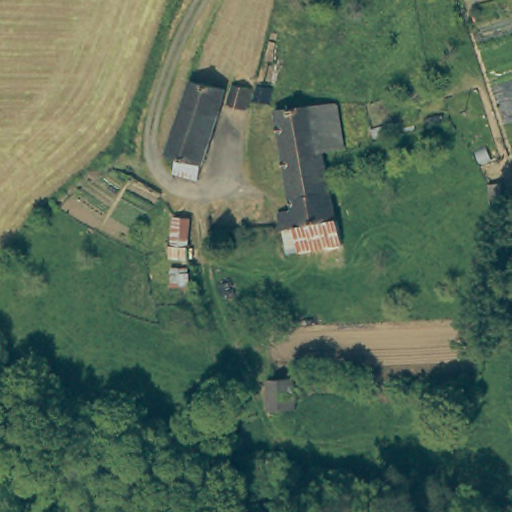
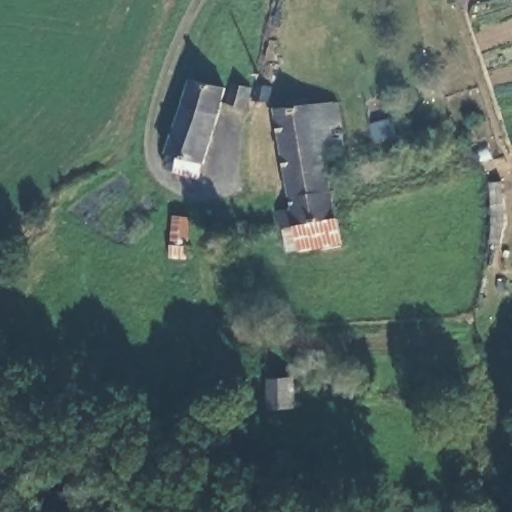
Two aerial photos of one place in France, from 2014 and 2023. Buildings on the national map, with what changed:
unchanged [(191,84),(228,92),(220,119),(182,109),(191,84)]
unchanged [(270,89),(267,104),(252,101),(255,87),(270,89)]
unchanged [(253,92),(247,113),(227,109),(232,88),(253,92)]
unchanged [(319,101),(320,104),(342,100),(351,141),(328,145),(337,191),(294,199),(275,109),(319,101)]
unchanged [(220,119),(203,180),(175,174),(179,160),(167,158),(182,109),(220,119)]
unchanged [(341,214),(298,222),(282,224),(280,210),(295,206),(294,199),(337,191),(341,214)]
unchanged [(169,287),(175,214),(196,215),(194,288),(169,287)]
unchanged [(341,214),(342,219),(345,240),(302,248),(298,222),(341,214)]

